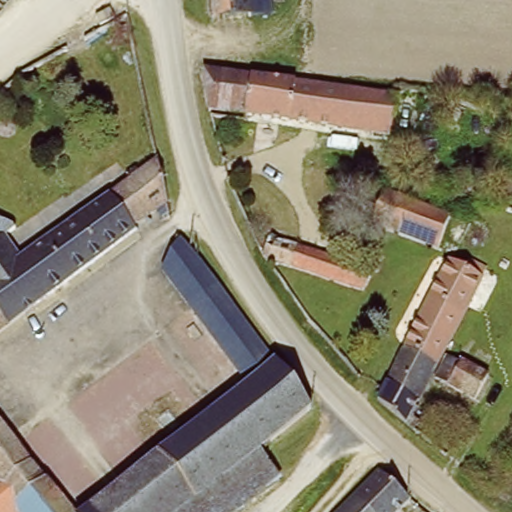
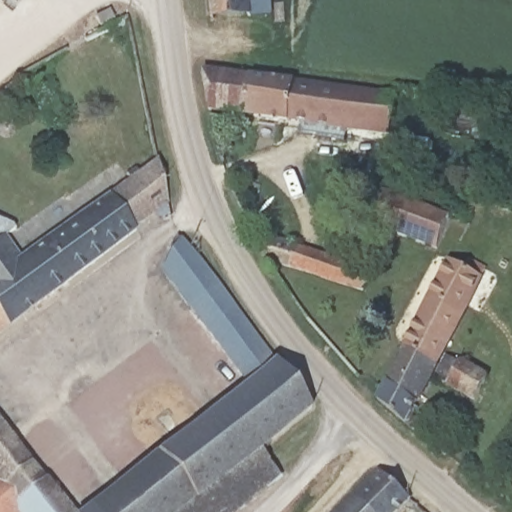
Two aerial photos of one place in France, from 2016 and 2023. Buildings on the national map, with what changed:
unchanged [(213,16),(211,0),(275,0),(276,10),(213,16)]
unchanged [(245,115),(211,111),(204,68),(251,74),(245,115)]
unchanged [(387,133),(245,115),(251,74),(392,93),(387,133)]
unchanged [(14,243),(35,225),(46,238),(139,166),(134,160),(161,140),(172,197),(174,209),(167,215),(160,206),(0,341),(0,240),(7,234),(14,243)]
unchanged [(458,239),(432,241),(430,245),(369,220),(371,215),(378,197),(381,189),(423,204),(464,219),(458,239)]
unchanged [(0,217),(18,221),(7,234),(0,233),(0,217)]
unchanged [(363,272),(359,285),(260,252),(267,231),(362,263),(366,264),(377,268),(374,276),(363,272)]
unchanged [(196,421),(256,373),(164,258),(192,236),(310,408),(264,446),(183,512),(84,512),(170,443),(163,434),(174,425),(190,413),(196,421)]
unchanged [(374,266),(363,263),(364,252),(376,257),(374,266)]
unchanged [(449,265),(468,275),(476,261),(490,269),(474,301),(441,365),(406,346),(449,265)]
unchanged [(406,346),(441,365),(412,421),(416,423),(413,429),(377,399),(406,346)]
unchanged [(471,399),(439,380),(452,359),(459,363),(484,378),(471,399)]
unchanged [(0,413),(83,512),(0,512),(0,413)]
unchanged [(235,512),(183,512),(264,446),(284,471),(235,512)]
unchanged [(376,468),(412,500),(402,512),(338,512),(376,468)]

